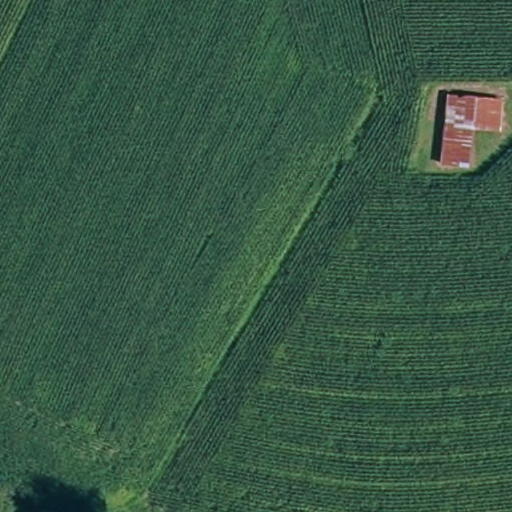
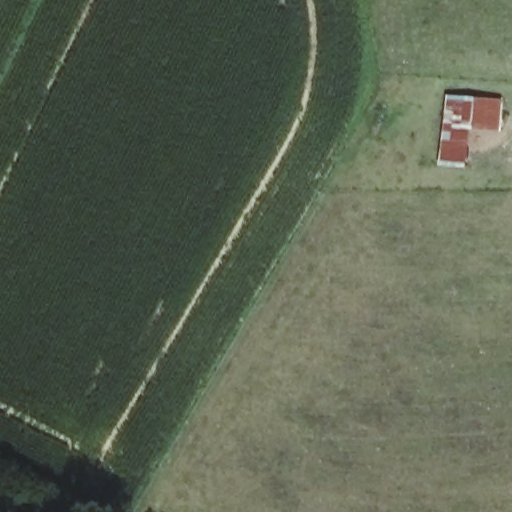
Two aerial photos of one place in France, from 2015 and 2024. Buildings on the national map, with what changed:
unchanged [(472,129),(469,169),(442,164),(447,96),(503,101),(503,131),(472,129)]

